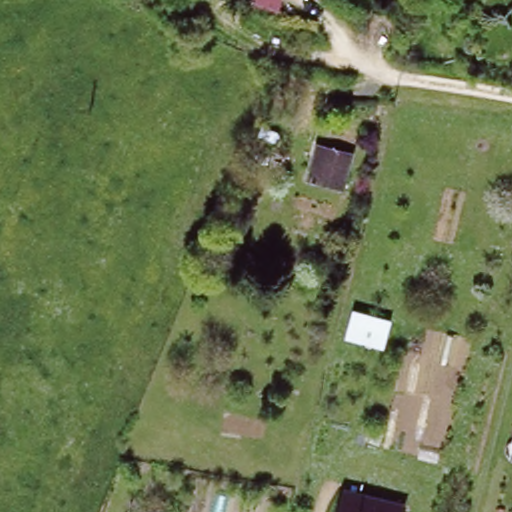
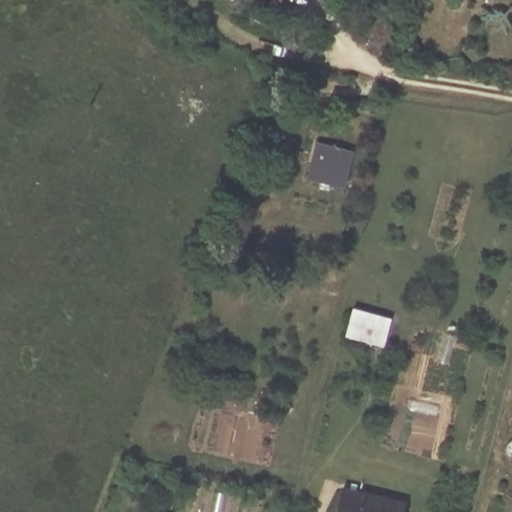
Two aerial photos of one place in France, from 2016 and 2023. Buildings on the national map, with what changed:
unchanged [(340,180),(312,173),(319,144),(346,151),(340,180)]
unchanged [(346,333),(355,304),(396,314),(389,342),(346,333)]
unchanged [(509,455),(507,453),(505,451),(504,449),(503,447),(503,444),(505,442),(505,440),(507,438),(510,437),(512,437),(512,456),(511,456),(509,455)]
unchanged [(338,512),(347,482),(408,500),(404,512),(338,512)]

